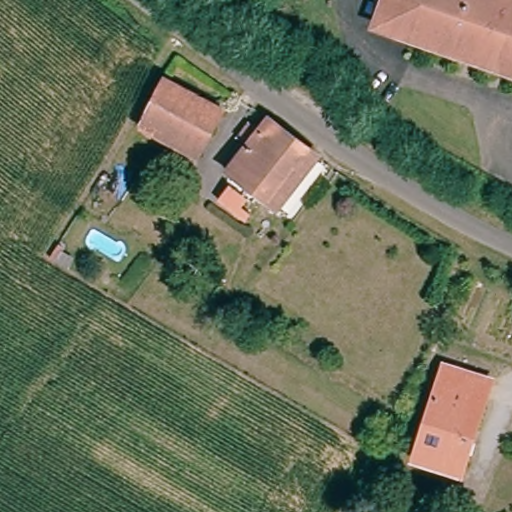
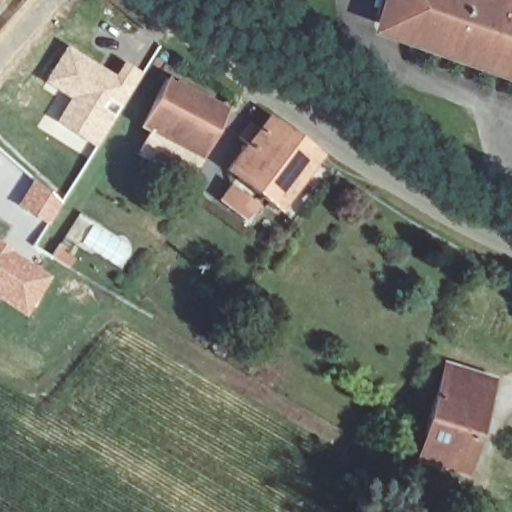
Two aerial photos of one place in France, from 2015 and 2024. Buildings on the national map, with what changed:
unchanged [(383,25),(392,0),(512,0),(512,74),(410,36),(383,25)]
new [(65,45),(113,75),(122,63),(142,74),(94,150),(51,124),(66,100),(41,84),(65,45)]
unchanged [(183,80),(227,101),(222,109),(201,155),(143,130),(163,82),(179,89),(183,80)]
unchanged [(314,160),(282,204),(230,169),(260,121),(314,160)]
new [(33,179),(61,203),(45,227),(15,205),(33,179)]
new [(237,190),(254,203),(248,212),(258,218),(253,225),(226,205),(237,190)]
unchanged [(73,230),(69,238),(77,245),(72,251),(54,241),(64,225),(73,230)]
new [(51,275),(22,319),(0,305),(0,241),(51,275)]
unchanged [(443,368),(492,388),(477,423),(431,402),(443,368)]
unchanged [(477,423),(457,479),(408,459),(431,402),(477,423)]

